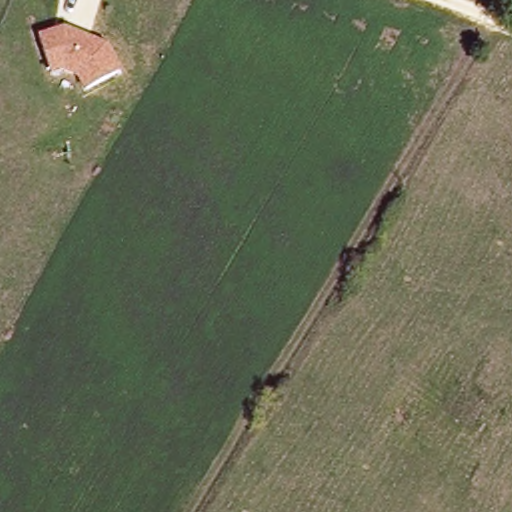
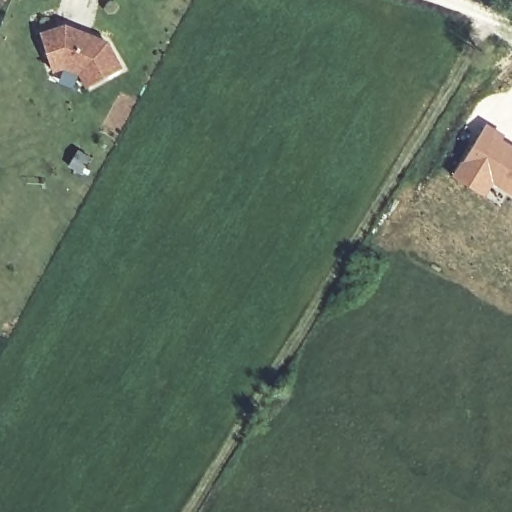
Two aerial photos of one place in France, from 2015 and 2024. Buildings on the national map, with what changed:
unchanged [(67,23),(114,43),(124,72),(87,86),(82,75),(66,68),(52,72),(41,32),(67,23)]
new [(485,122),(504,135),(512,142),(512,197),(493,184),(484,197),(450,175),(485,122)]

